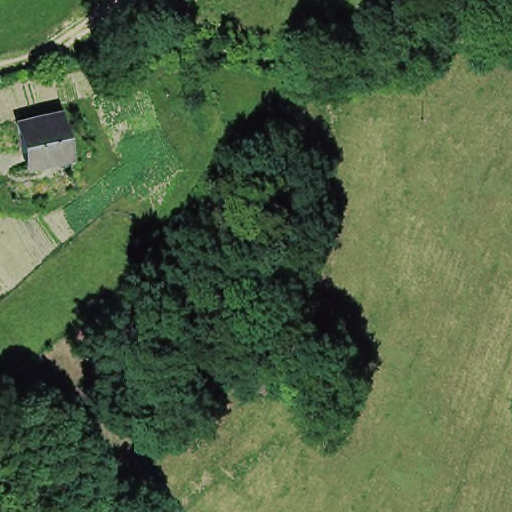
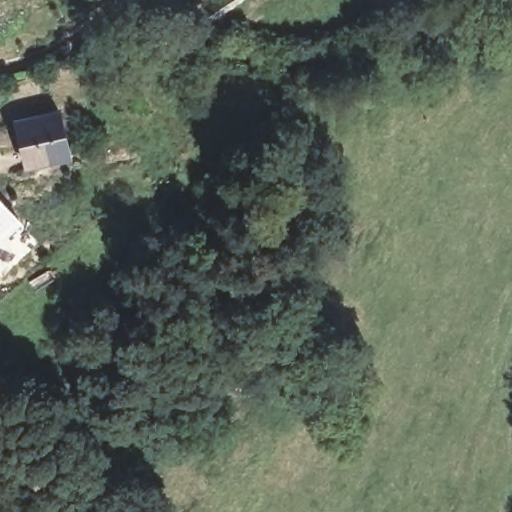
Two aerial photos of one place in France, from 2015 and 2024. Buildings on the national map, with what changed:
unchanged [(70,151),(23,160),(14,114),(59,105),(70,151)]
new [(0,246),(0,199),(23,224),(0,246)]

